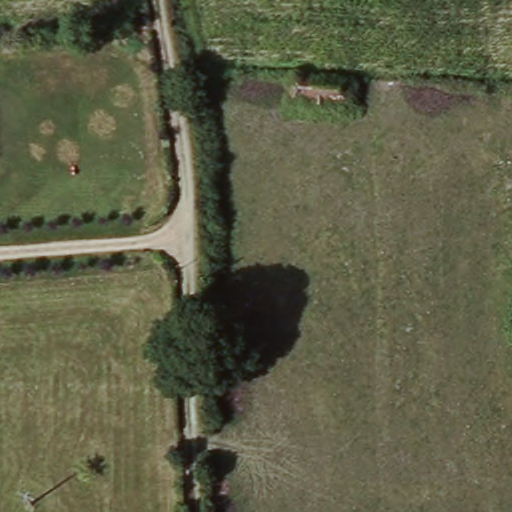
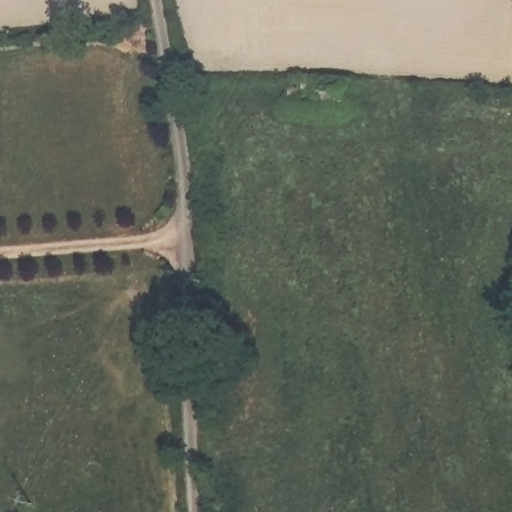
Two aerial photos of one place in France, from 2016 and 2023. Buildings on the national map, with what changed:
unchanged [(353,80),(351,110),(294,108),(293,80),(353,80)]

